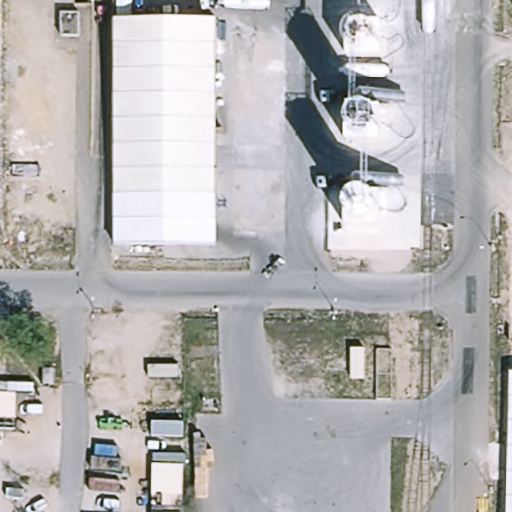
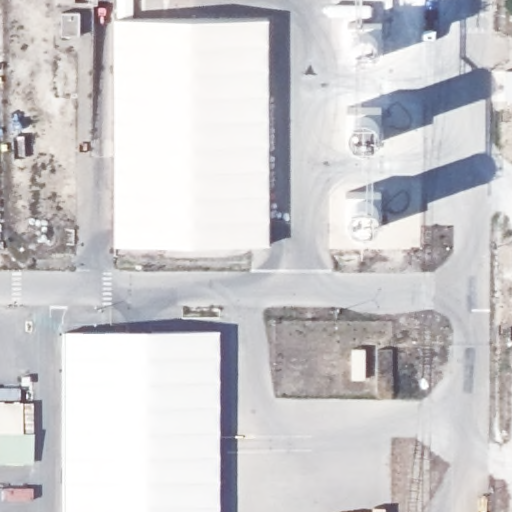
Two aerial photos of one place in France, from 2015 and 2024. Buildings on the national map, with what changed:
unchanged [(218,15),(220,242),(119,242),(117,16),(218,15)]
new [(269,17),(270,244),(220,242),(218,15),(269,17)]
new [(217,332),(217,512),(62,512),(62,335),(217,332)]
demolished [(0,417),(0,382),(18,382),(18,417),(0,417)]
new [(19,404),(32,405),(32,435),(32,465),(0,465),(0,389),(19,389),(19,404)]

